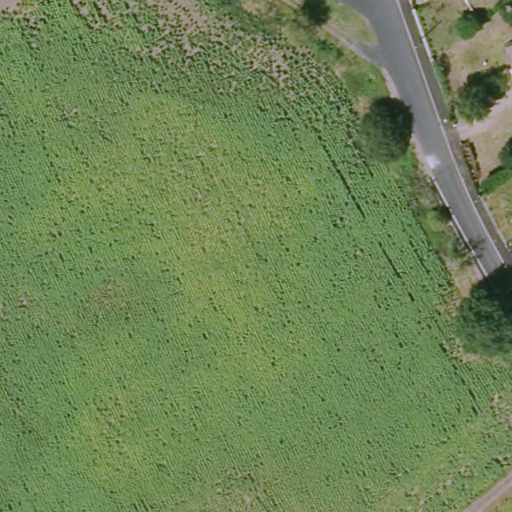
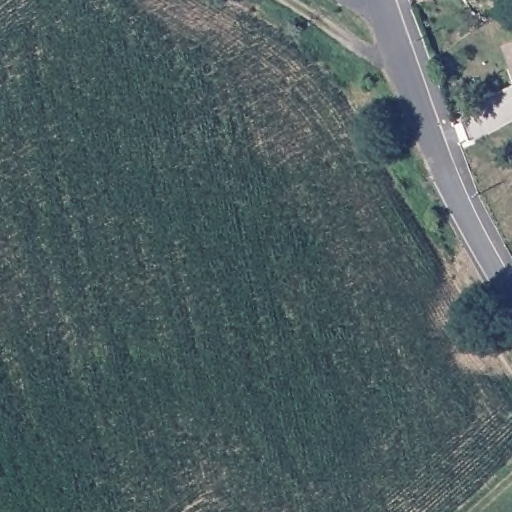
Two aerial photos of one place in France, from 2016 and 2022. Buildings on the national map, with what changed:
unchanged [(512,38),(512,79),(501,42),(512,38)]

